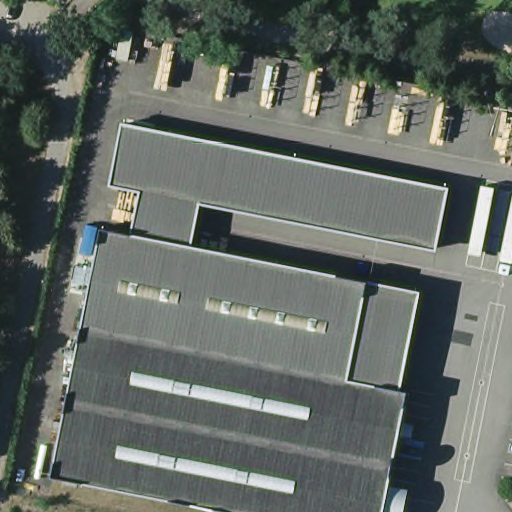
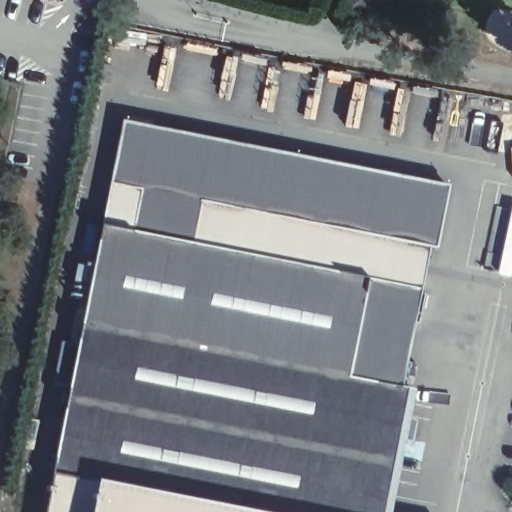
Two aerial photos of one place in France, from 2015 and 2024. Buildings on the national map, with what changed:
unchanged [(137,194),(108,188),(121,126),(445,189),(432,252),(198,206),(137,194)]
unchanged [(128,237),(137,194),(198,206),(188,249),(128,237)]
unchanged [(101,232),(128,237),(188,249),(366,284),(347,380),(82,328),(101,232)]
unchanged [(366,284),(420,294),(401,390),(347,380),(366,284)]
unchanged [(401,390),(408,392),(384,512),(46,512),(82,328),(347,380),(401,390)]

